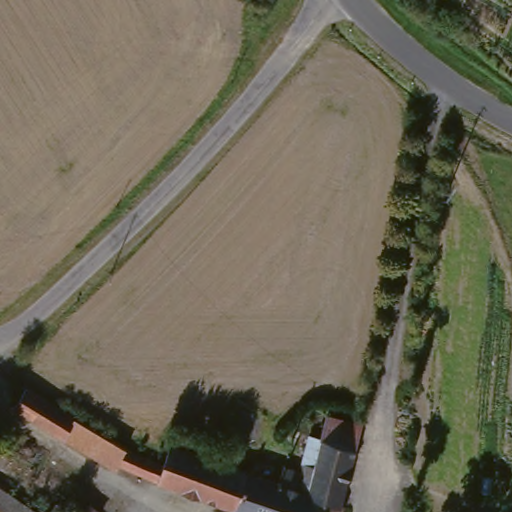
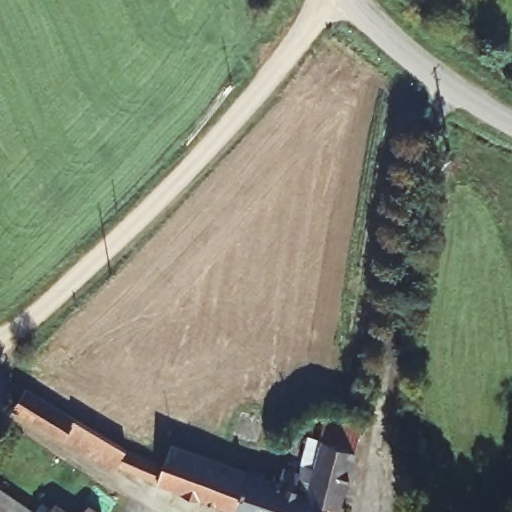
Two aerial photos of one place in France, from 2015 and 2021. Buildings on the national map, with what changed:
unchanged [(136,452),(170,466),(177,444),(287,481),(291,467),(307,472),(309,461),(325,467),(317,494),(347,503),(353,505),(351,512),(252,512),(206,495),(128,464),(126,473),(21,405),(32,391),(136,452)]
unchanged [(315,437),(329,441),(336,418),(370,425),(347,503),(317,494),(325,467),(309,461),(315,437)]
unchanged [(1,457),(0,459),(0,456),(1,457)]
unchanged [(34,505),(43,491),(44,492),(70,512),(0,512),(0,482),(34,505)]

